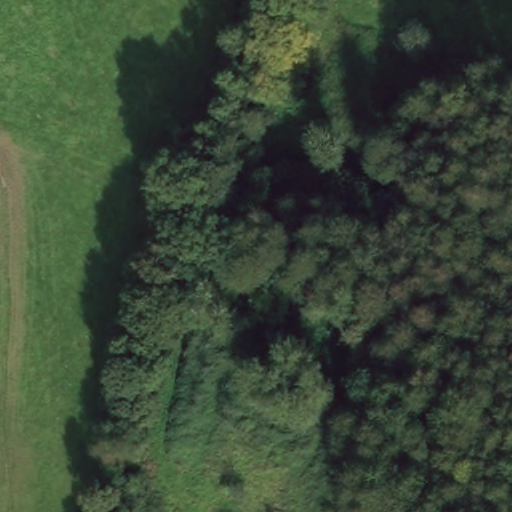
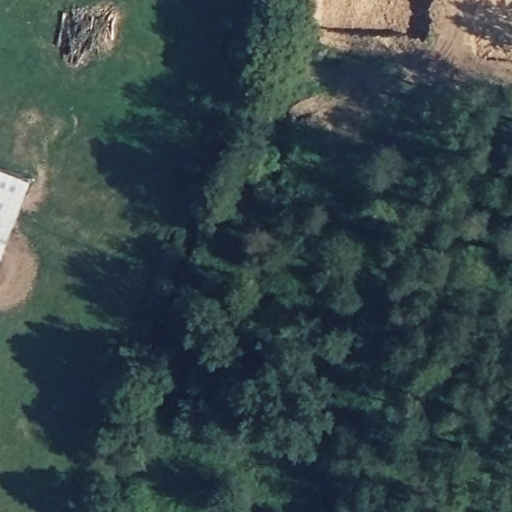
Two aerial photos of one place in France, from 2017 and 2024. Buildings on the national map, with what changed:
new [(1,263),(0,263),(0,166),(33,179),(1,263)]

